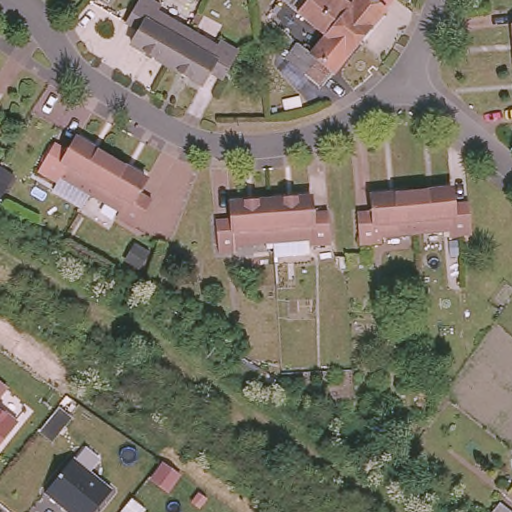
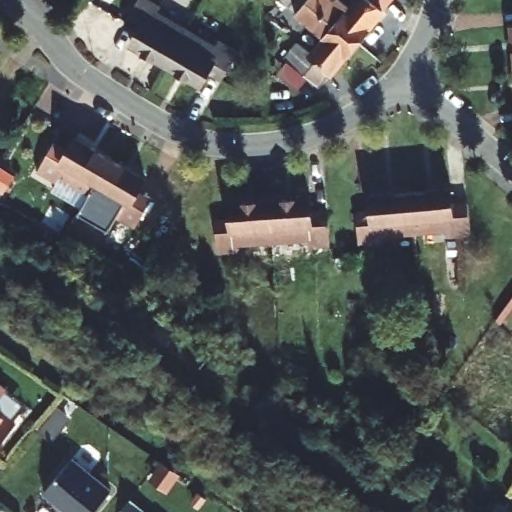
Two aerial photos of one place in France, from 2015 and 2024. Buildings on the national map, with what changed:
unchanged [(125,49),(132,36),(118,29),(134,0),(135,0),(154,11),(151,16),(172,29),(180,33),(160,69),(125,49)]
unchanged [(285,58),(297,41),(313,54),(327,38),(296,12),(302,4),(297,0),(309,0),(343,28),(358,40),(320,87),(285,58)]
unchanged [(343,28),(309,0),(390,0),(358,40),(343,28)]
unchanged [(503,20),(512,19),(512,59),(506,59),(503,20)]
unchanged [(160,69),(180,33),(212,50),(215,45),(233,55),(217,84),(203,76),(195,89),(160,69)]
unchanged [(506,59),(512,59),(512,100),(509,100),(506,59)]
unchanged [(90,184),(77,176),(60,166),(58,170),(39,159),(55,132),(69,140),(77,128),(111,149),(90,184)]
unchanged [(117,205),(119,200),(90,184),(111,149),(146,169),(139,182),(152,189),(137,217),(117,205)]
unchanged [(445,185),(447,198),(463,197),(466,229),(445,231),(444,225),(409,229),(409,224),(405,188),(445,185)]
unchanged [(308,229),(272,232),(269,191),(309,188),(310,203),(327,201),(330,233),(308,234),(308,229)]
unchanged [(409,224),(409,229),(375,232),(375,238),(354,239),(350,208),(366,206),(365,191),(405,188),(409,224)]
unchanged [(272,232),(253,233),(238,234),(238,240),(217,242),(215,211),(230,209),(229,194),(269,191),(272,232)]
unchanged [(7,389),(0,400),(0,384),(7,389)]
unchanged [(15,423),(0,443),(0,410),(15,423)]
unchanged [(43,492),(72,457),(112,491),(92,512),(66,512),(43,492)]
unchanged [(512,511),(512,512),(491,512),(490,511),(498,499),(512,511)]

